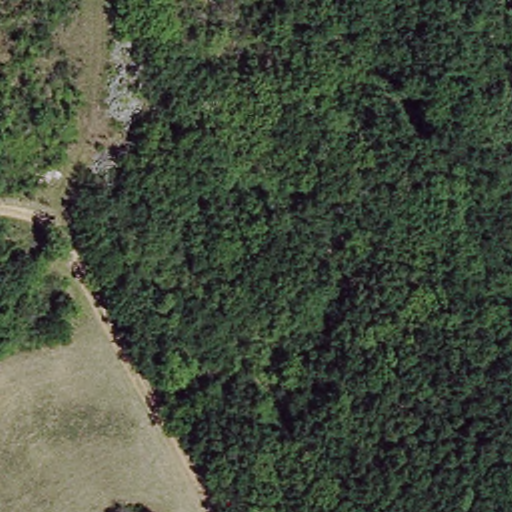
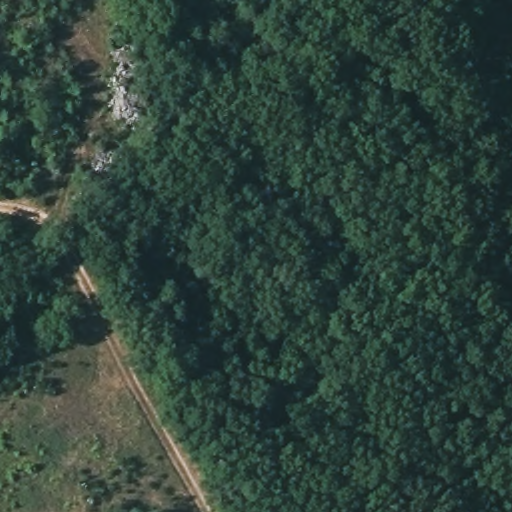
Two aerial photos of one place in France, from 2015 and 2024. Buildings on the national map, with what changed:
[]

